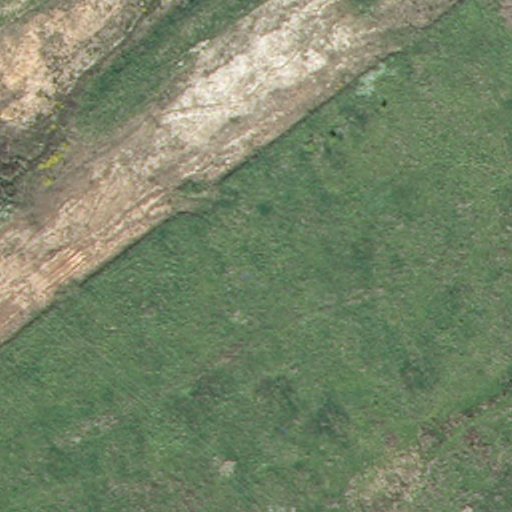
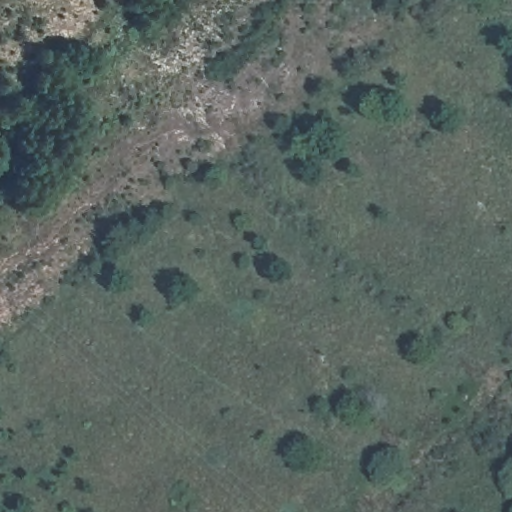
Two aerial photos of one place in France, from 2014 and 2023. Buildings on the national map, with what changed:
[]

